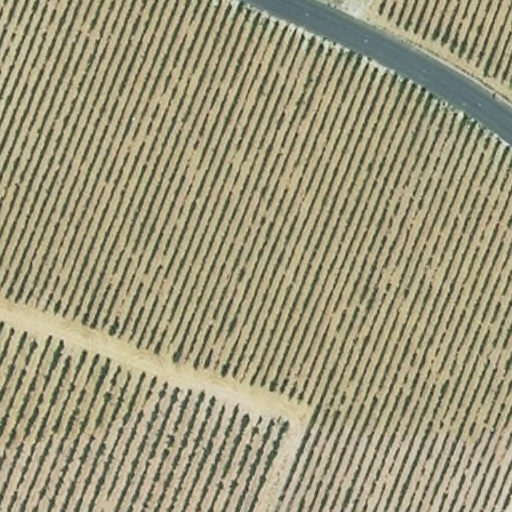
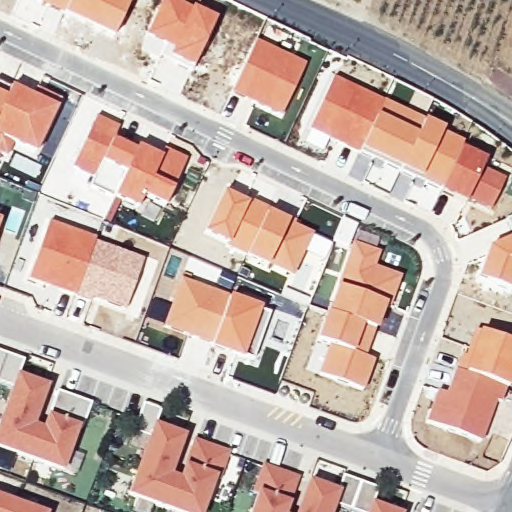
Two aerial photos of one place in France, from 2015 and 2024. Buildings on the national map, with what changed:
new [(34,0),(69,0),(62,14),(34,0)]
new [(130,0),(112,37),(62,14),(69,0),(130,0)]
new [(172,0),(215,21),(191,70),(139,48),(161,0),(172,0)]
new [(255,41),(305,64),(280,117),(230,91),(255,41)]
new [(332,75),(383,100),(357,154),(356,154),(328,141),(322,151),(301,141),(332,75)]
new [(3,96),(8,86),(58,108),(35,155),(15,146),(8,158),(0,155),(0,103),(3,96)]
new [(3,96),(0,103),(0,95),(3,96)]
new [(30,176),(42,183),(82,95),(123,115),(118,126),(95,115),(70,166),(90,178),(87,186),(116,201),(109,224),(37,192),(36,195),(23,190),(30,176)]
new [(402,200),(345,174),(356,154),(357,154),(383,100),(443,129),(442,133),(462,143),(460,148),(486,159),(483,166),(507,177),(491,210),(467,200),(465,204),(440,193),(430,213),(402,200)]
new [(95,115),(118,126),(112,138),(160,156),(135,212),(116,201),(87,186),(90,178),(70,166),(95,115)]
new [(160,156),(163,148),(187,159),(154,225),(137,213),(135,212),(160,156)]
new [(12,150),(42,165),(36,178),(7,164),(12,150)]
new [(222,192),(267,210),(313,234),(292,277),(288,276),(270,267),(270,269),(201,233),(222,192)]
new [(348,250),(329,242),(343,212),(350,215),(349,220),(358,225),(357,229),(380,238),(375,249),(381,252),(376,265),(402,276),(376,331),(324,312),(348,250)]
new [(512,217),(512,234),(505,220),(512,217)]
new [(46,220),(95,238),(74,298),(24,280),(46,220)]
new [(288,276),(292,277),(313,234),(333,244),(305,309),(278,296),(288,276)]
new [(512,236),(512,292),(475,278),(486,247),(512,236)]
new [(95,238),(145,257),(125,313),(92,301),(90,303),(74,298),(95,238)]
new [(162,275),(178,281),(180,278),(212,290),(215,283),(183,270),(188,255),(222,269),(219,275),(235,282),(230,295),(209,347),(162,326),(170,301),(153,295),(162,275)]
new [(275,306),(302,317),(288,357),(279,353),(266,347),(258,370),(240,363),(209,347),(230,295),(264,305),(273,309),(275,306)]
new [(324,312),(376,331),(366,356),(322,344),(313,341),(324,312)]
new [(512,343),(512,376),(507,389),(454,369),(474,329),(512,343)]
new [(312,349),(319,352),(322,344),(366,356),(375,359),(363,391),(304,370),(312,349)]
new [(21,361),(17,375),(47,385),(32,426),(40,428),(45,416),(54,391),(89,404),(81,429),(77,428),(60,473),(0,451),(0,412),(10,386),(0,383),(0,353),(21,361)]
new [(436,390),(443,393),(454,369),(507,389),(500,403),(497,402),(480,443),(423,422),(436,390)]
new [(140,404),(157,409),(155,424),(183,435),(169,476),(177,479),(180,466),(190,439),(227,452),(217,480),(213,479),(201,512),(171,512),(125,495),(145,437),(130,432),(140,404)]
new [(287,504),(284,512),(248,512),(253,497),(248,495),(258,464),(297,477),(287,504)]
new [(305,481),(335,490),(340,476),(375,489),(370,504),(392,512),(354,512),(332,505),(330,512),(294,512),(305,481)]
new [(39,512),(0,512),(0,498),(39,512)]

